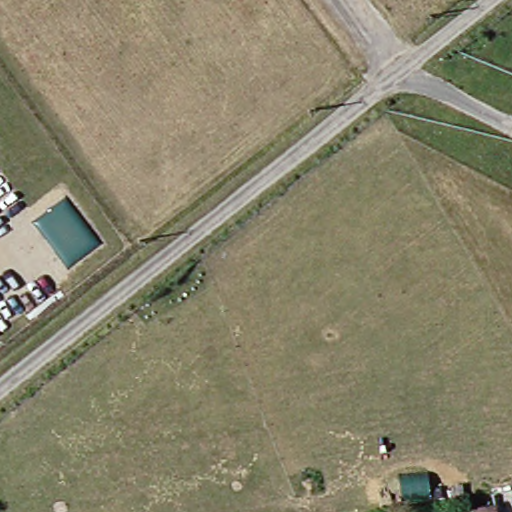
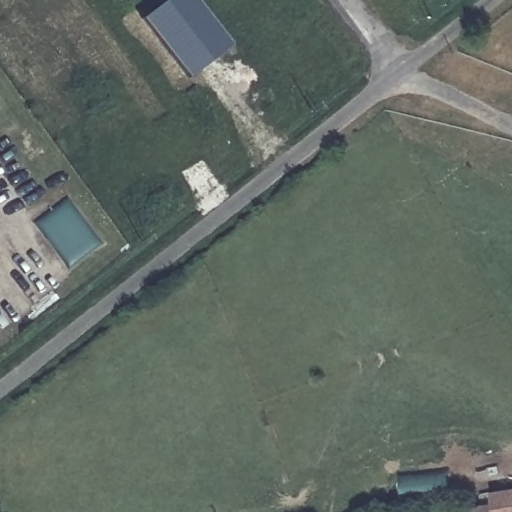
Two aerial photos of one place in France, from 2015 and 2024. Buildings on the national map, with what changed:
new [(143,20),(167,0),(194,0),(229,47),(187,77),(143,20)]
unchanged [(464,512),(462,505),(512,499),(512,512),(464,512)]

